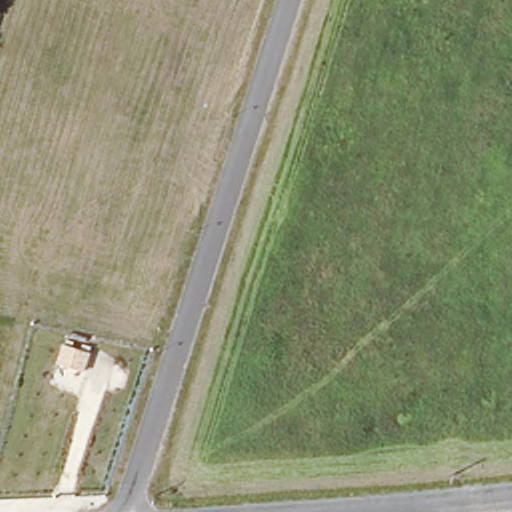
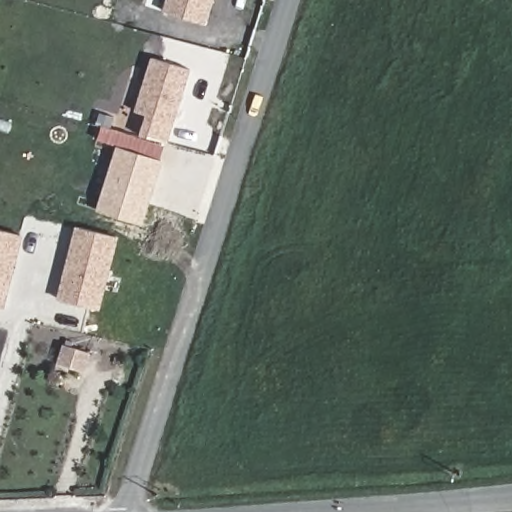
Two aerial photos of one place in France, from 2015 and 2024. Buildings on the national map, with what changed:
new [(212,0),(204,25),(163,12),(167,0),(212,0)]
new [(146,116),(133,112),(152,58),(191,70),(168,145),(165,145),(139,137),(146,116)]
new [(117,147),(98,141),(101,125),(97,124),(100,112),(115,117),(113,128),(139,137),(165,145),(160,161),(117,147)]
new [(143,226),(97,212),(117,147),(163,162),(143,226)]
new [(99,311),(58,300),(76,227),(118,238),(99,311)]
new [(5,310),(0,308),(0,230),(24,237),(5,310)]
unchanged [(85,372),(57,363),(63,344),(91,353),(85,372)]

